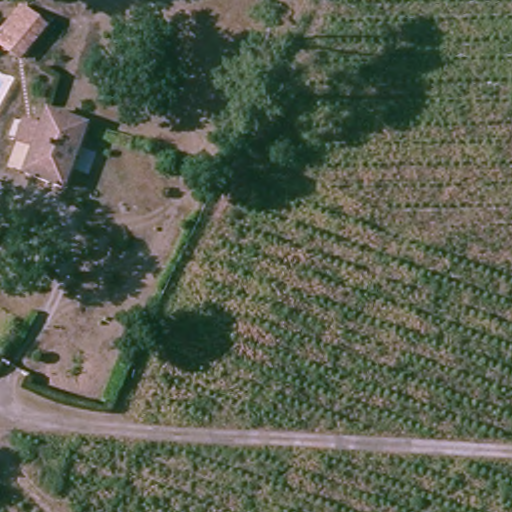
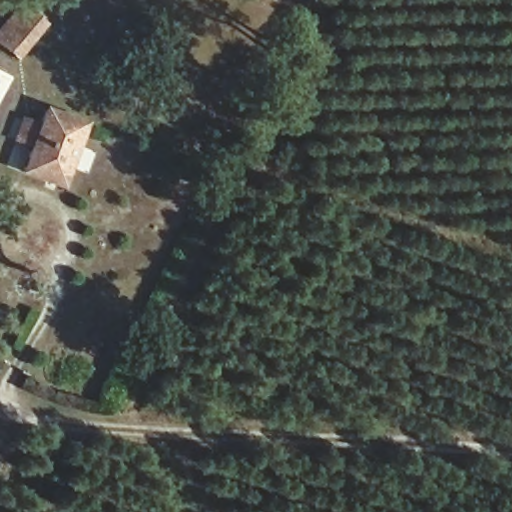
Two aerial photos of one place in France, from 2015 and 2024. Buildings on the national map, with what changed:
unchanged [(20,59),(0,42),(0,29),(20,2),(47,25),(20,59)]
unchanged [(66,188),(26,170),(34,149),(16,140),(26,117),(41,124),(47,106),(88,124),(66,188)]

